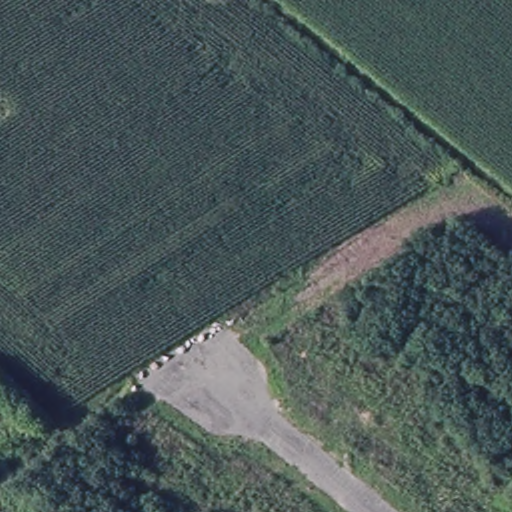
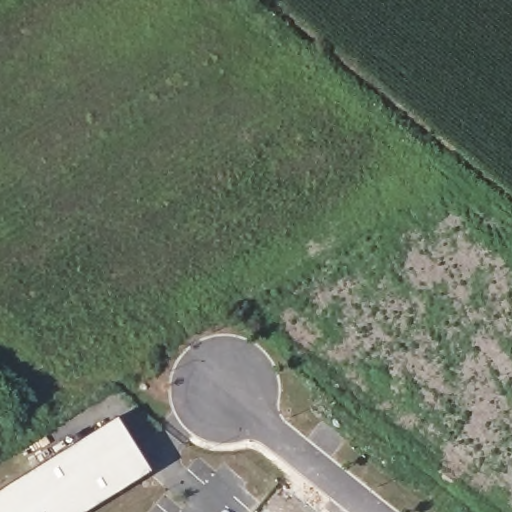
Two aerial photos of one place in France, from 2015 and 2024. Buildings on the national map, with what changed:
new [(141,477),(85,512),(0,512),(0,489),(107,422),(141,477)]

